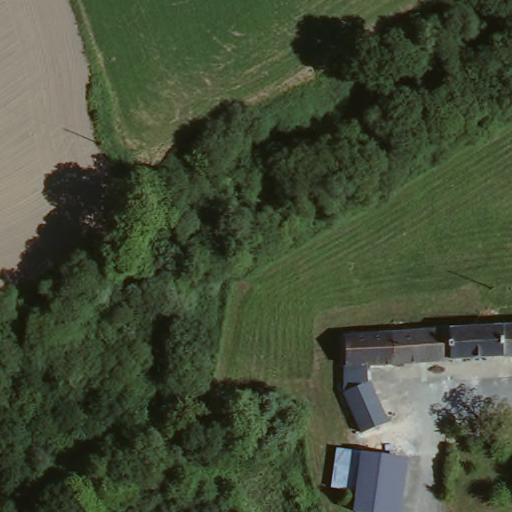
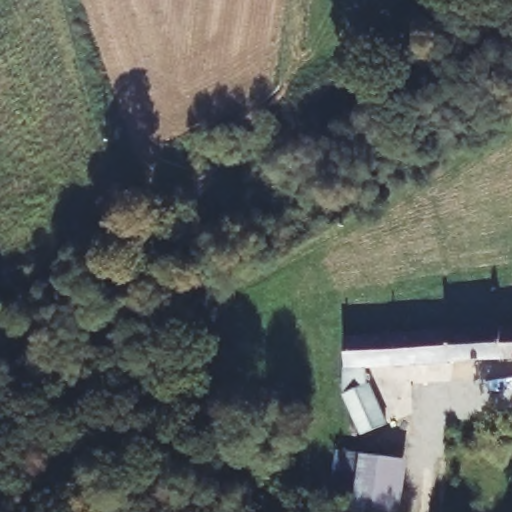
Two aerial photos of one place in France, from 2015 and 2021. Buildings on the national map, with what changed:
unchanged [(512,353),(453,355),(453,322),(512,320),(512,353)]
unchanged [(368,360),(387,418),(363,427),(346,389),(343,382),(349,326),(453,322),(453,355),(368,360)]
unchanged [(467,434),(466,439),(465,448),(457,447),(438,446),(440,429),(467,434)]
unchanged [(353,503),(361,446),(397,451),(387,508),(353,503)]

